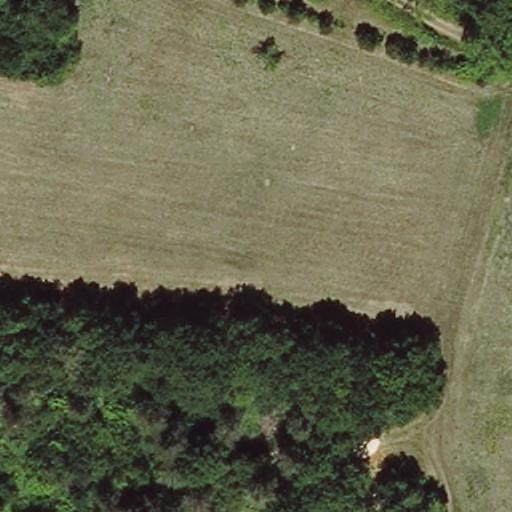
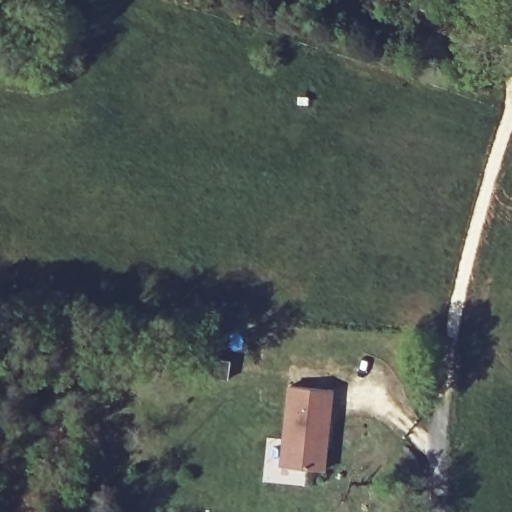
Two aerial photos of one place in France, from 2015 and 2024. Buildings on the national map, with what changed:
new [(334,389),(326,468),(279,465),(286,386),(334,389)]

